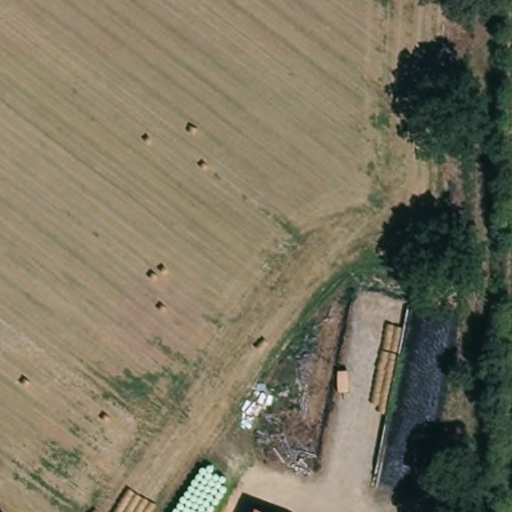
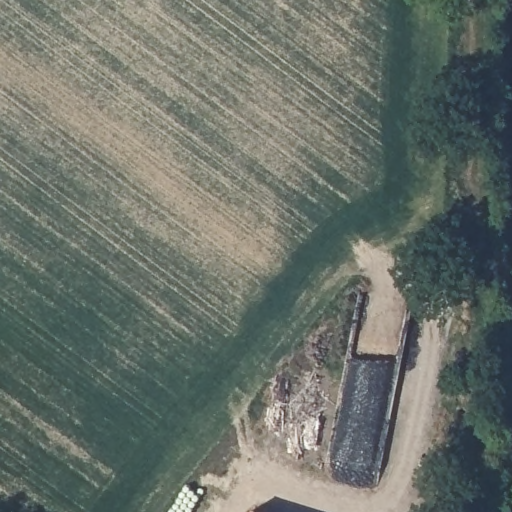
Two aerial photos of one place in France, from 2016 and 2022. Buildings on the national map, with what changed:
unchanged [(260,505),(274,512),(256,512),(260,505)]

